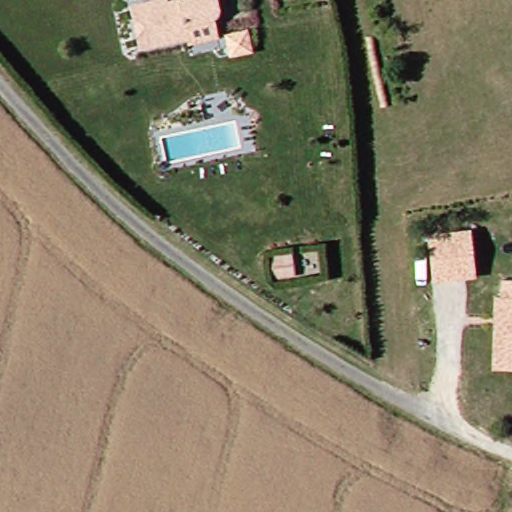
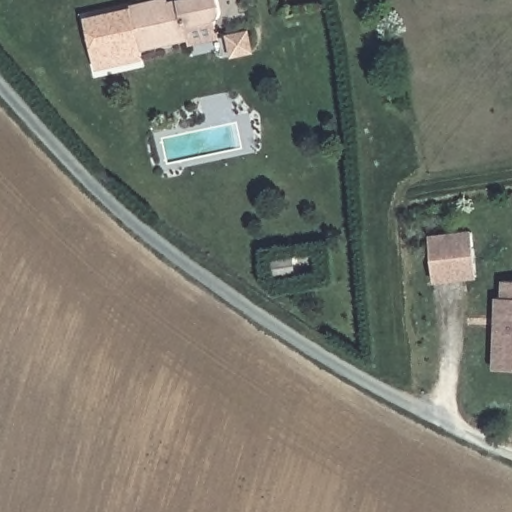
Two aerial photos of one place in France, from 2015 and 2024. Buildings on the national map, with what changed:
unchanged [(195,0),(215,0),(220,25),(185,30),(186,43),(138,50),(129,5),(158,0),(167,0),(168,5),(180,4),(195,2),(195,0)]
new [(84,17),(129,7),(138,50),(141,62),(97,71),(84,17)]
unchanged [(434,284),(429,234),(475,230),(480,279),(434,284)]
unchanged [(498,329),(498,319),(500,298),(506,298),(507,282),(512,282),(512,371),(494,370),(498,329)]

